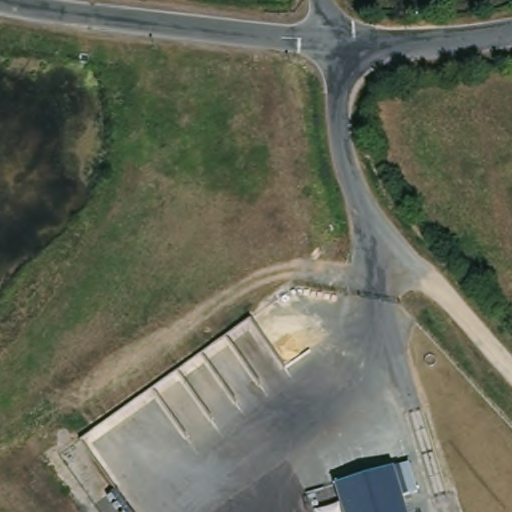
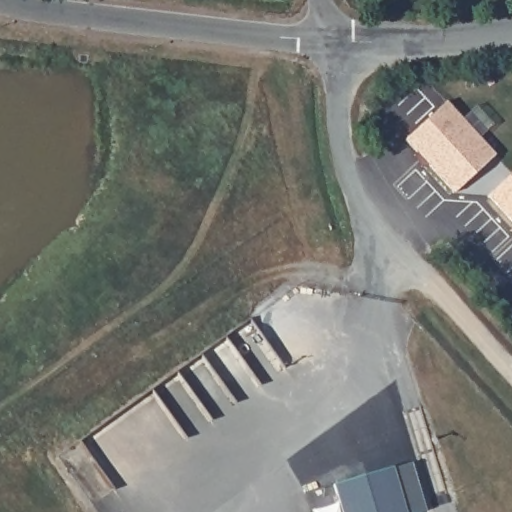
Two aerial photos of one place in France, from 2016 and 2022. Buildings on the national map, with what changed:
new [(496,155),(455,193),(405,140),(446,101),(496,155)]
unchanged [(407,512),(346,512),(337,483),(395,466),(407,512)]

